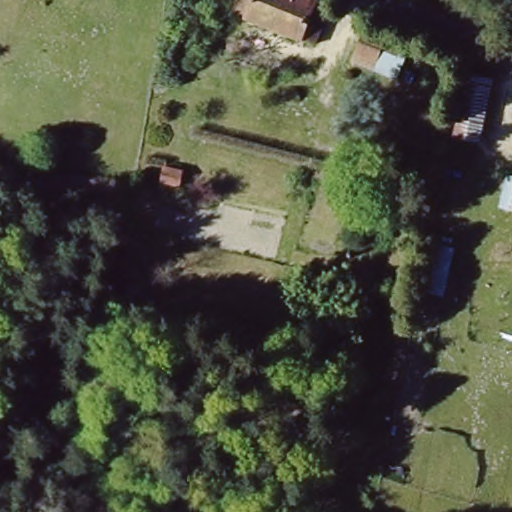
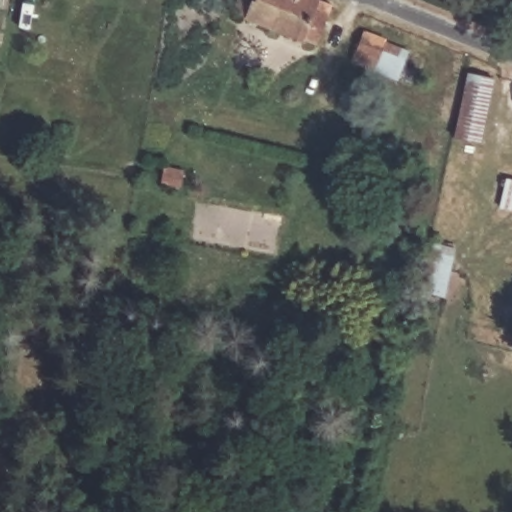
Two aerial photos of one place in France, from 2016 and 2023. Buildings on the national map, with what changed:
unchanged [(337,4),(322,42),(240,12),(245,0),(326,0),(337,4)]
unchanged [(367,29),(412,40),(399,77),(355,62),(367,29)]
unchanged [(484,68),(467,152),(440,147),(459,63),(484,68)]
unchanged [(512,200),(499,197),(504,171),(512,173),(512,200)]
unchanged [(450,297),(419,291),(431,241),(457,244),(450,297)]

